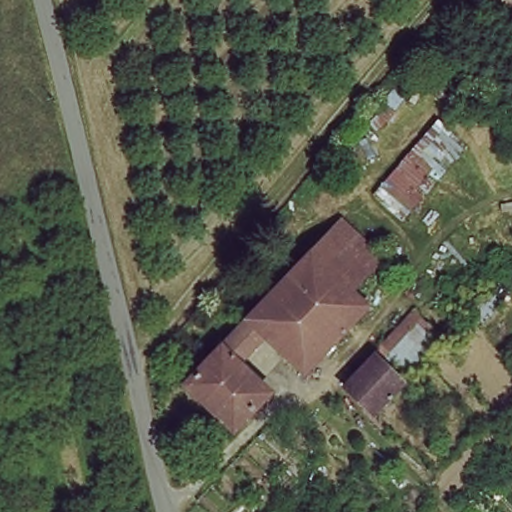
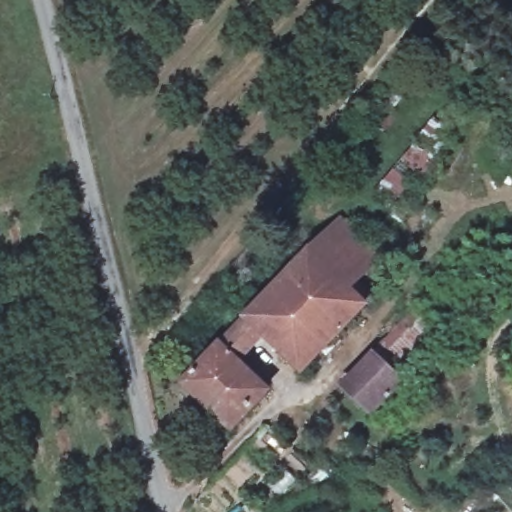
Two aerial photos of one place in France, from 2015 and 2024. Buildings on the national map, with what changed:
unchanged [(444,116),(470,144),(404,216),(373,192),(444,116)]
unchanged [(350,223),(392,260),(375,278),(334,242),(350,223)]
unchanged [(334,242),(375,278),(359,295),(373,311),(335,351),(296,316),(272,343),(263,335),(255,328),(334,242)]
unchanged [(374,351),(411,310),(440,344),(410,382),(375,417),(341,385),(374,351)]
unchanged [(310,377),(272,343),(296,316),(335,351),(310,377)]
unchanged [(255,328),(263,335),(272,343),(244,374),(265,393),(273,401),(240,437),(195,394),(255,328)]

